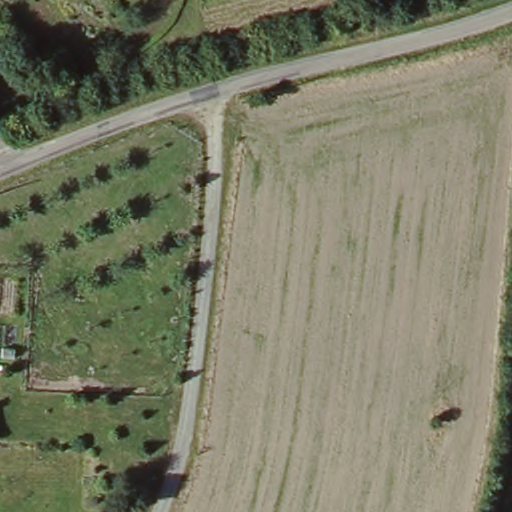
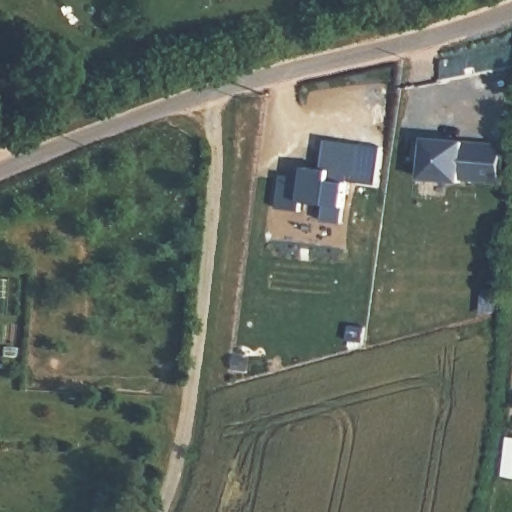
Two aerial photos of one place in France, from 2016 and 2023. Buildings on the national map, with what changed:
new [(427,137),(467,139),(483,140),(480,181),(462,179),(462,184),(423,180),(424,162),(411,162),(414,132),(427,137)]
new [(360,142),(356,174),(351,173),(349,183),(346,208),(344,222),(325,219),(327,204),(304,202),(303,210),(279,208),(284,172),(306,174),(306,166),(324,168),(327,139),(360,142)]

